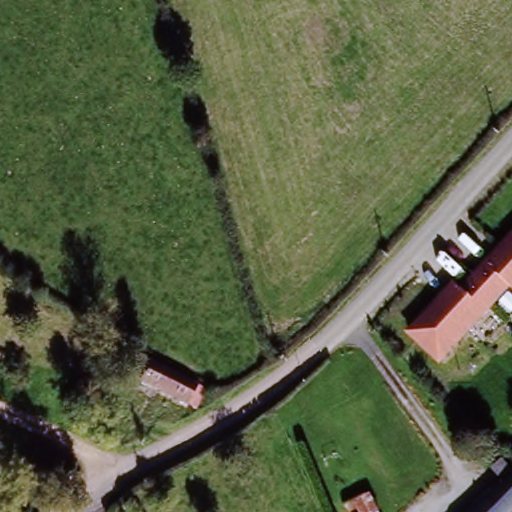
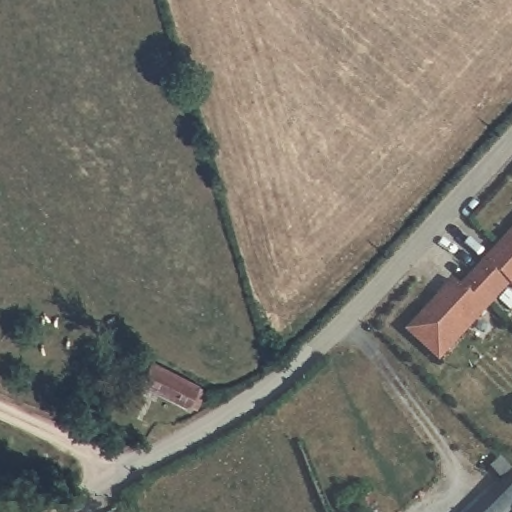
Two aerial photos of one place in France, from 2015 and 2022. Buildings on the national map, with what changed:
unchanged [(457,283),(512,220),(512,284),(443,358),(403,327),(447,274),(457,283)]
unchanged [(195,409),(183,403),(145,381),(153,367),(193,389),(203,394),(195,409)]
unchanged [(493,474),(500,467),(512,478),(512,512),(478,512),(505,486),(493,474)]
unchanged [(379,512),(340,512),(372,499),(379,512)]

